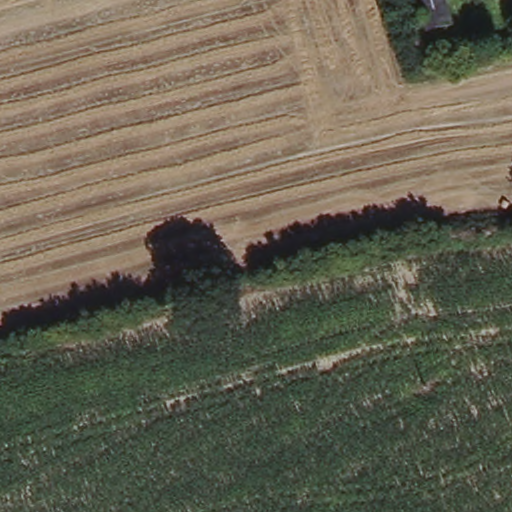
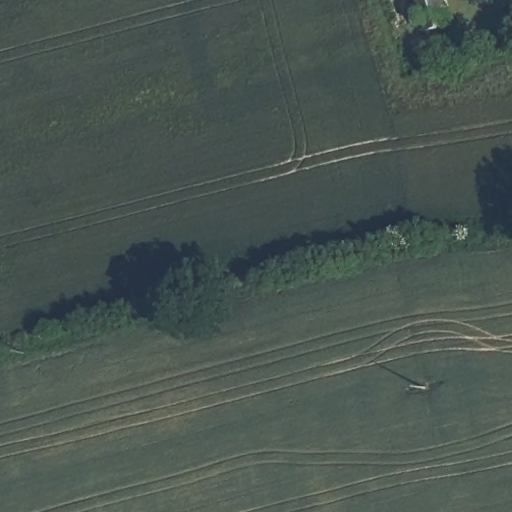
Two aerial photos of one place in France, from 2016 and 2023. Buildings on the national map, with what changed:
unchanged [(426,32),(423,19),(413,20),(411,2),(421,1),(421,0),(446,0),(451,27),(426,32)]

